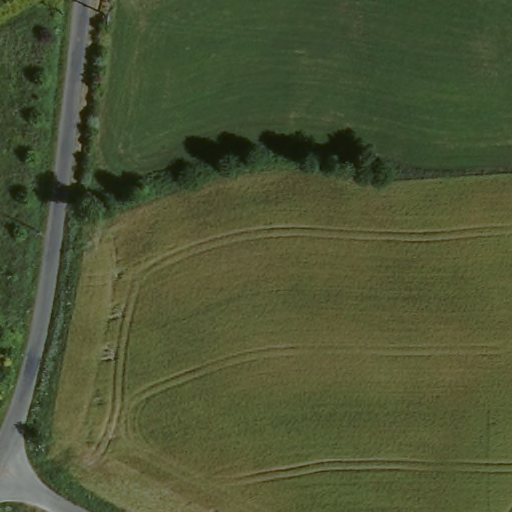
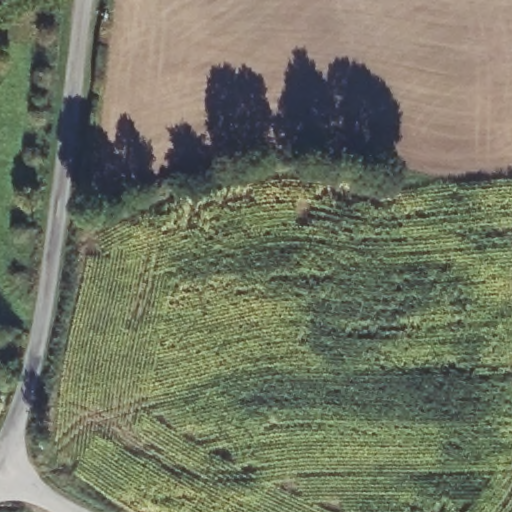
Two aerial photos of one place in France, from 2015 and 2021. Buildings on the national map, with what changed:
[]

